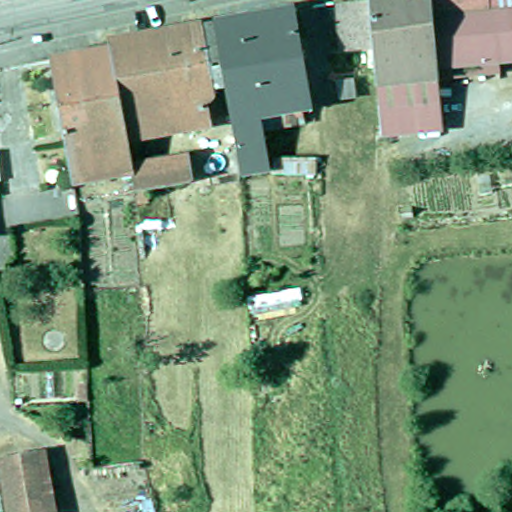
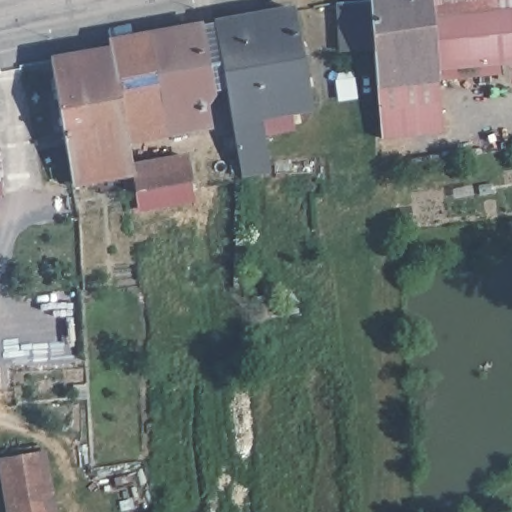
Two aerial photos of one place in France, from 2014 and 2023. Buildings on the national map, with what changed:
unchanged [(368,0),(490,0),(496,66),(437,72),(437,80),(377,89),(368,0)]
unchanged [(490,0),(512,0),(512,65),(496,66),(490,0)]
unchanged [(240,150),(213,22),(295,7),(307,61),(316,102),(320,117),(265,128),(267,145),(272,171),(246,175),(240,150)]
unchanged [(215,98),(207,110),(210,128),(130,143),(109,49),(107,44),(200,25),(215,98)]
unchanged [(51,61),(109,49),(130,143),(135,168),(71,179),(51,61)]
unchanged [(442,134),(383,141),(381,120),(377,89),(437,80),(440,113),(442,134)]
unchanged [(135,210),(133,199),(141,197),(135,171),(189,160),(195,184),(150,195),(152,206),(135,210)]
unchanged [(0,188),(0,168),(2,188),(0,188)]
unchanged [(2,470),(42,460),(48,483),(41,485),(7,494),(2,470)]
unchanged [(48,483),(55,512),(10,512),(7,494),(41,485),(48,483)]

